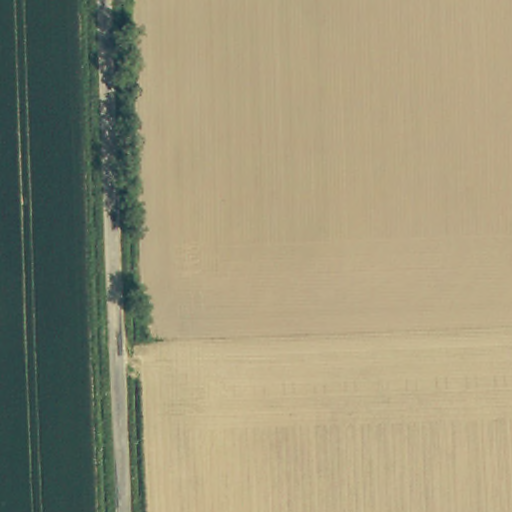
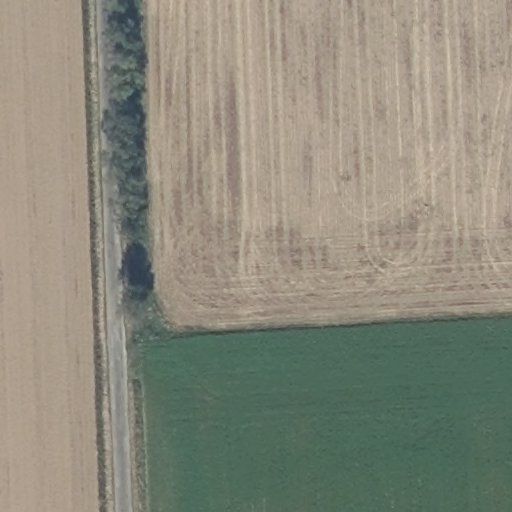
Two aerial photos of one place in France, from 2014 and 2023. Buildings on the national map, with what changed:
[]

